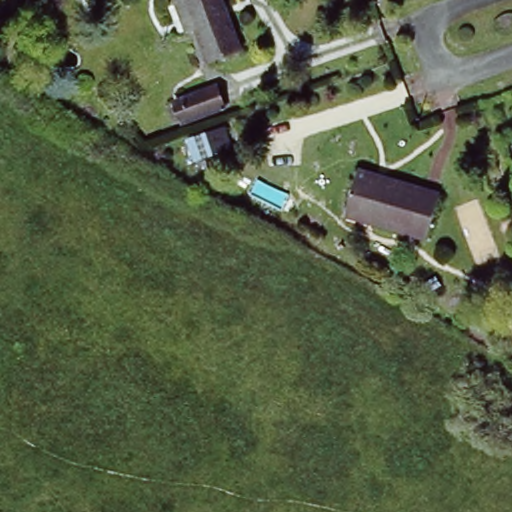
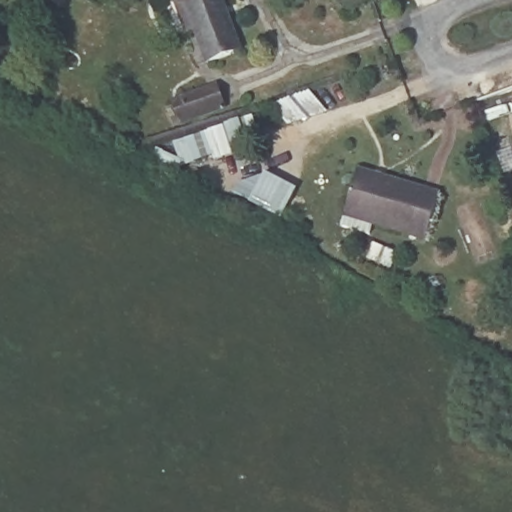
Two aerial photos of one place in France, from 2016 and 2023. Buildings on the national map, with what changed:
unchanged [(205,62),(193,27),(185,30),(175,0),(220,0),(238,52),(205,62)]
unchanged [(179,107),(212,95),(220,115),(187,127),(178,129),(171,109),(179,107)]
unchanged [(507,149),(512,147),(512,164),(507,149)]
unchanged [(342,203),(351,170),(435,196),(422,241),(370,224),(338,215),(342,203)]

